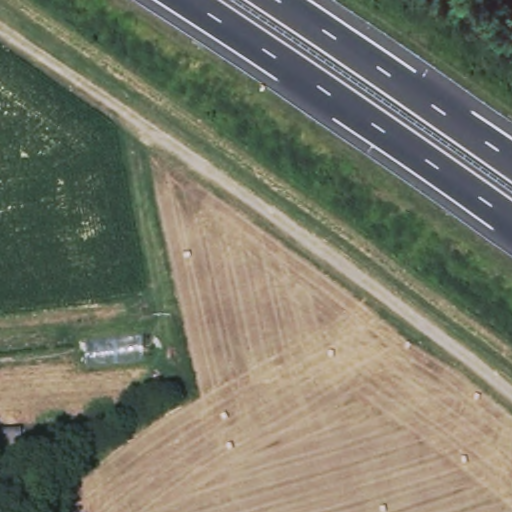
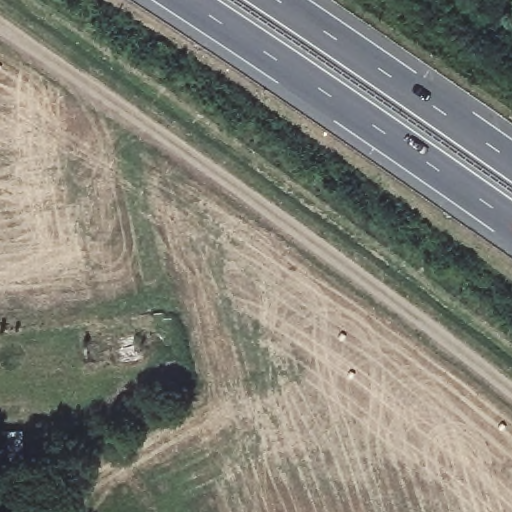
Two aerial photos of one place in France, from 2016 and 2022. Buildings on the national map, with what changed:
unchanged [(24,423),(27,457),(0,459),(0,426),(24,423)]

